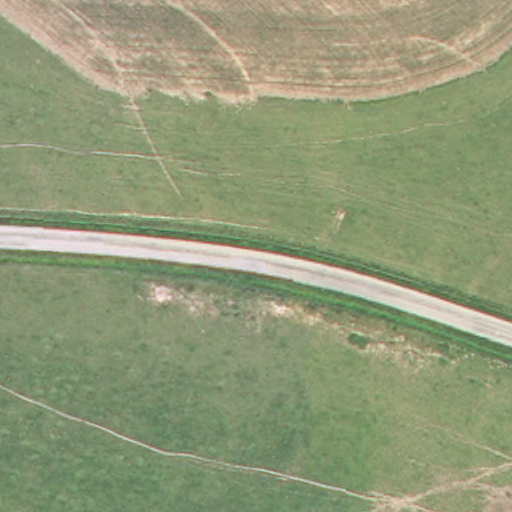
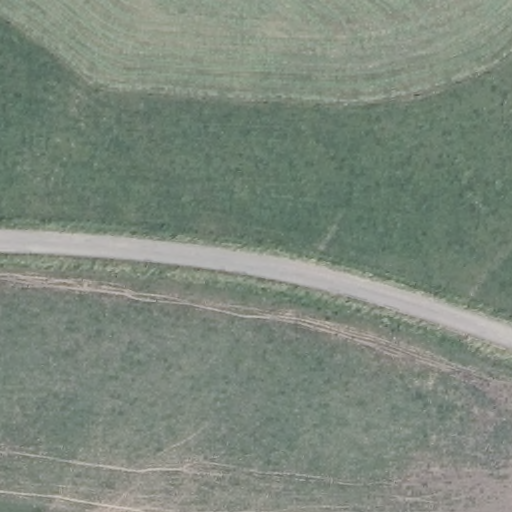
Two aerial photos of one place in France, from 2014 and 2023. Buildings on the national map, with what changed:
[]

